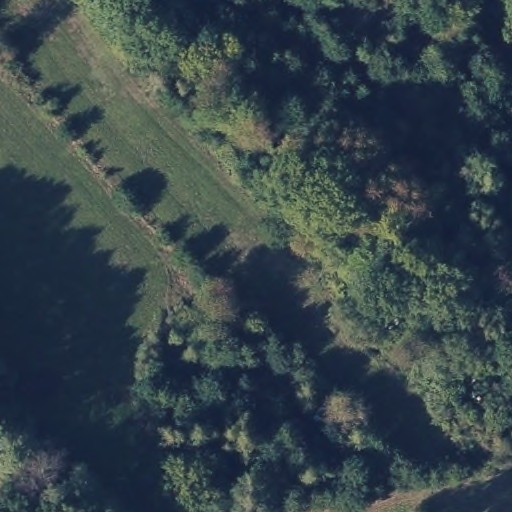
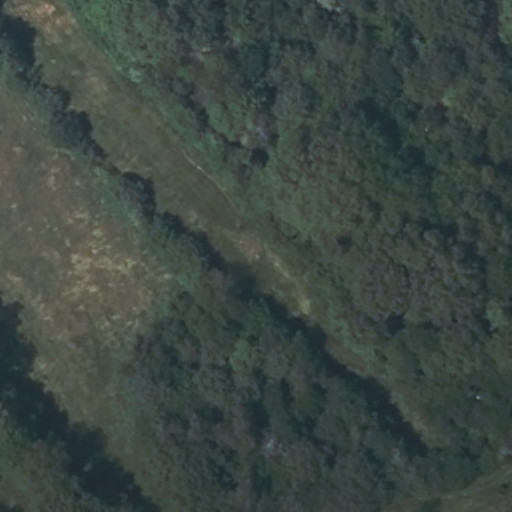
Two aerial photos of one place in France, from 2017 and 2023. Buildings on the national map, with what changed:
unchanged [(348,422),(340,434),(314,418),(322,406),(348,422)]

